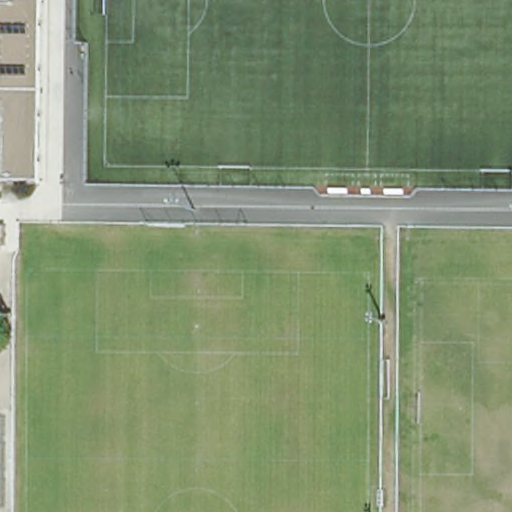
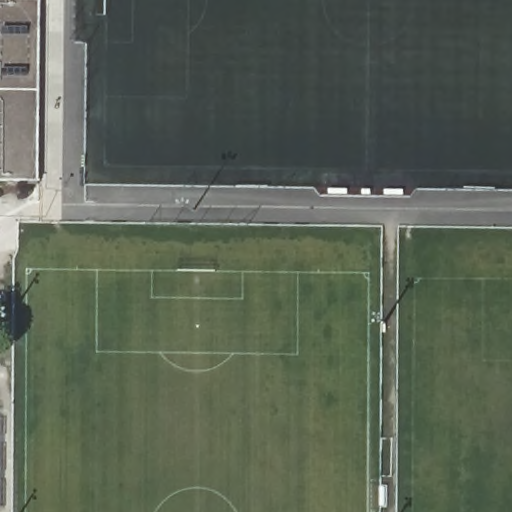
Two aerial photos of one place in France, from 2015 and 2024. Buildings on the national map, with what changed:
unchanged [(39,181),(0,181),(0,0),(42,0),(39,181)]

